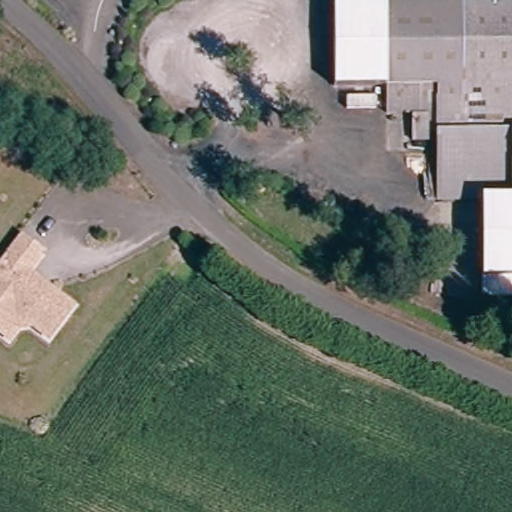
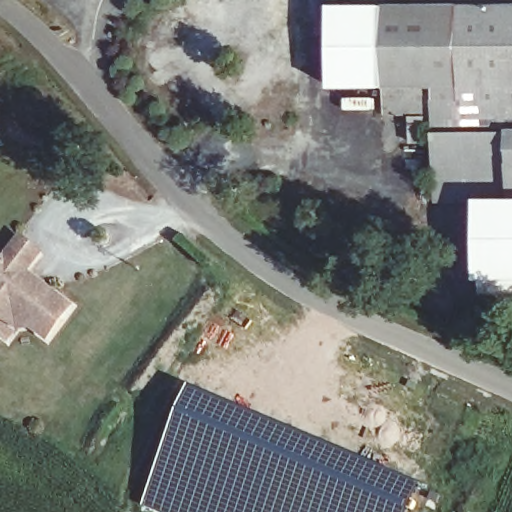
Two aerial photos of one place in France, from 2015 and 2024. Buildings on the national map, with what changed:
unchanged [(446,110),(440,121),(412,122),(413,112),(387,111),(390,82),(339,81),(341,5),(461,6),(446,110)]
unchanged [(440,142),(440,121),(446,110),(461,6),(512,7),(512,142),(440,142)]
unchanged [(480,214),(437,214),(440,142),(512,142),(512,215),(480,214)]
unchanged [(481,286),(480,214),(512,215),(512,286),(481,286)]
unchanged [(0,267),(0,262),(4,257),(8,260),(22,240),(42,254),(17,288),(30,297),(40,283),(71,308),(49,338),(32,326),(18,328),(9,341),(0,334),(0,271),(1,268),(0,267)]
unchanged [(481,305),(481,286),(512,286),(512,305),(481,305)]
new [(194,388),(427,488),(417,512),(159,512),(145,506),(194,388)]

